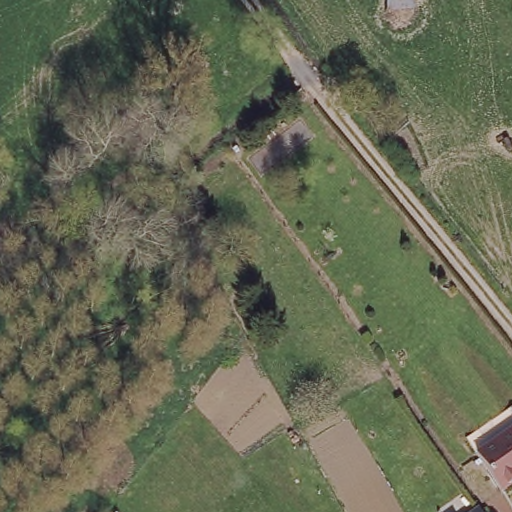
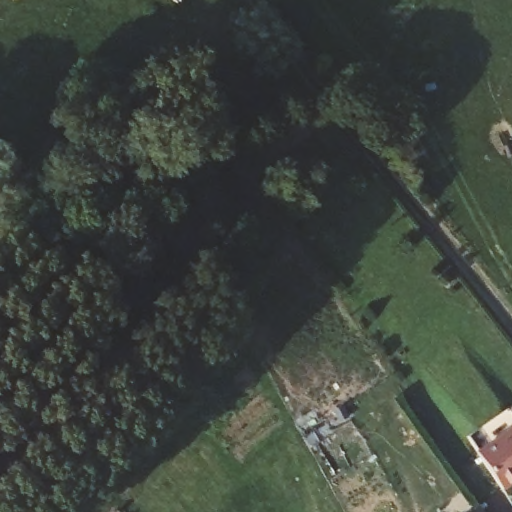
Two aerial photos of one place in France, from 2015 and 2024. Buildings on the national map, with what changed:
unchanged [(413,0),(413,4),(399,4),(385,6),(385,0),(413,0)]
unchanged [(500,486),(474,449),(512,423),(512,477),(500,486)]
unchanged [(480,498),(490,512),(460,512),(480,498)]

